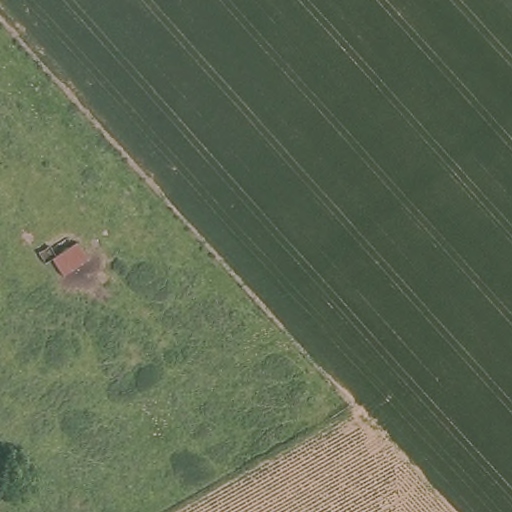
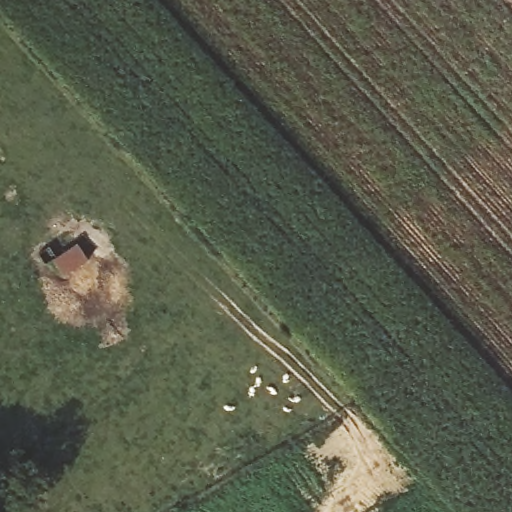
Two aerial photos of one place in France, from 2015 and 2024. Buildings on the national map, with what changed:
unchanged [(83,240),(93,255),(65,274),(54,259),(83,240)]

